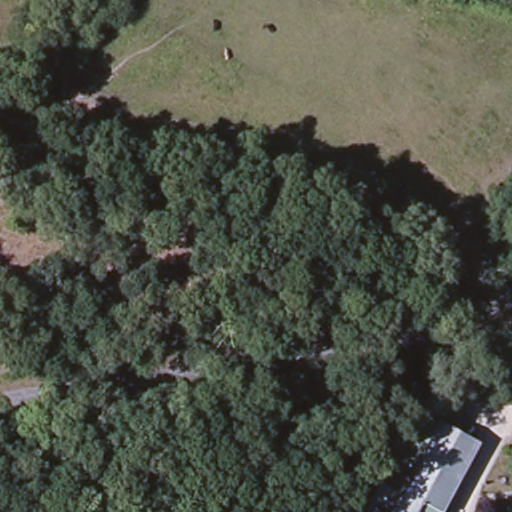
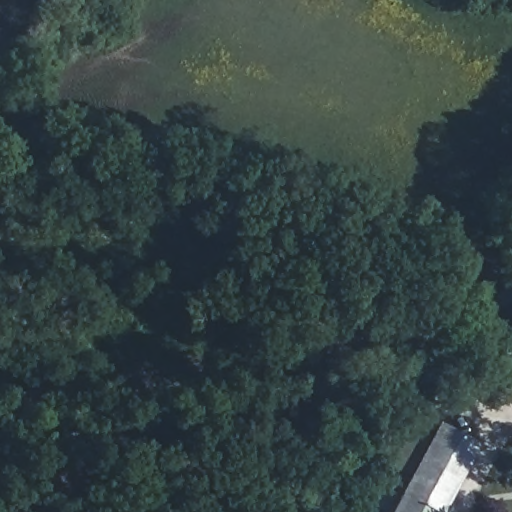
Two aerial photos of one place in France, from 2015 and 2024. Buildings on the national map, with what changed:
unchanged [(436,421),(476,443),(470,457),(441,512),(391,512),(428,435),(436,421)]

